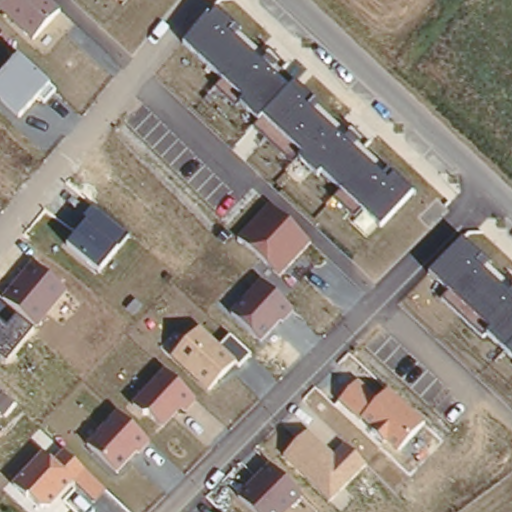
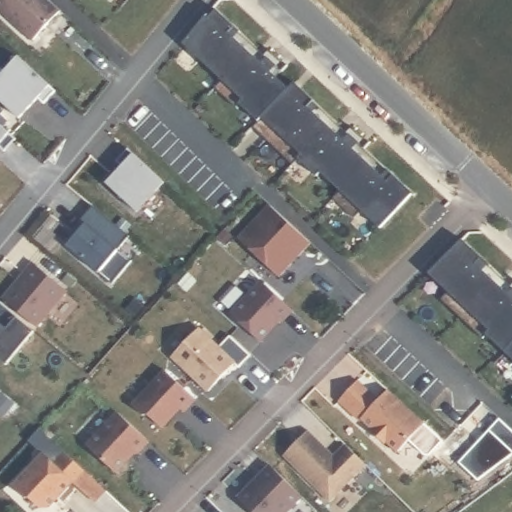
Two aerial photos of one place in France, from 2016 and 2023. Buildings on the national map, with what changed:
unchanged [(63,7),(34,43),(0,13),(0,0),(55,0),(63,7)]
unchanged [(262,52),(269,46),(288,61),(273,74),(289,89),(294,83),(316,101),(346,130),(351,124),(369,141),(364,148),(412,192),(378,227),(360,208),(354,214),(334,196),(340,189),(320,170),(316,175),(296,156),(291,162),(251,124),(256,118),(239,101),(234,106),(214,86),(221,79),(182,40),(208,14),(211,16),(218,9),(262,52)]
unchanged [(57,90),(44,105),(38,99),(19,120),(0,102),(0,73),(18,52),(57,90)]
new [(14,137),(2,149),(0,146),(0,124),(14,137)]
new [(162,181),(134,208),(107,181),(123,164),(117,158),(127,148),(162,181)]
unchanged [(313,240),(278,278),(235,239),(271,200),(313,240)]
unchanged [(131,232),(99,276),(64,249),(78,232),(73,229),(94,202),(131,232)]
unchanged [(512,280),(512,357),(487,333),(482,337),(440,297),(446,290),(429,273),(462,240),(509,283),(512,280)]
unchanged [(69,289),(38,328),(2,295),(33,257),(69,289)]
unchanged [(294,310),(261,345),(227,311),(261,276),(294,310)]
unchanged [(33,330),(5,363),(0,359),(0,299),(33,330)]
unchanged [(220,344),(230,333),(252,354),(240,369),(235,364),(208,393),(170,357),(200,324),(220,344)]
unchanged [(197,398),(185,412),(181,410),(161,431),(131,401),(165,366),(197,398)]
unchanged [(379,397),(390,386),(427,425),(399,456),(337,398),(357,375),(379,397)]
unchanged [(149,440),(115,476),(83,445),(116,409),(149,440)]
new [(512,426),(512,455),(479,480),(461,462),(502,417),(512,426)]
unchanged [(334,454),(346,441),(366,463),(331,500),(281,453),(308,426),(334,454)]
unchanged [(65,447),(106,488),(95,501),(72,481),(44,512),(39,512),(11,485),(43,451),(52,459),(65,447)]
unchanged [(288,512),(248,512),(234,497),(269,461),(303,496),(288,512)]

